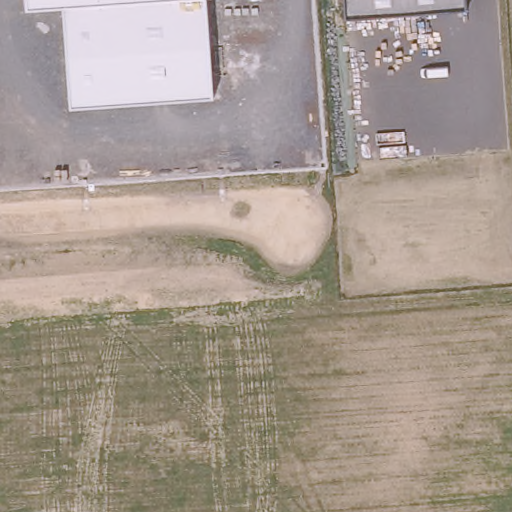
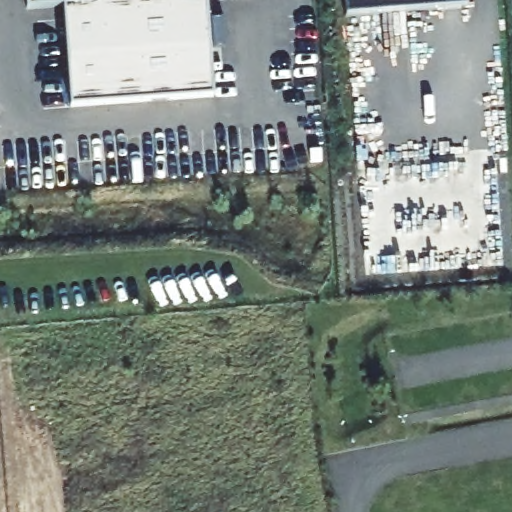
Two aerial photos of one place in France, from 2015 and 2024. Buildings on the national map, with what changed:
unchanged [(216,96),(71,106),(62,6),(26,8),(25,0),(208,0),(216,96)]
unchanged [(466,6),(347,13),(347,0),(466,0),(466,6)]

